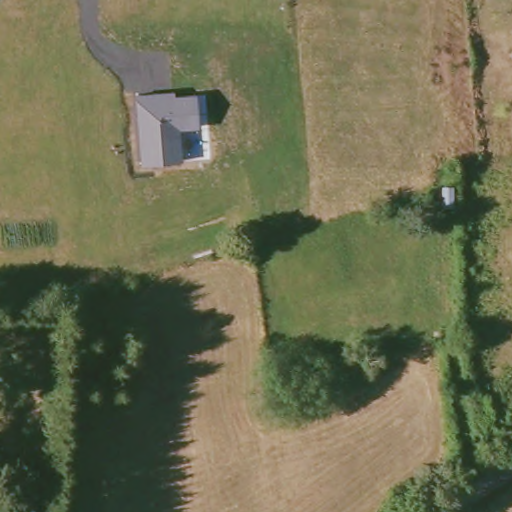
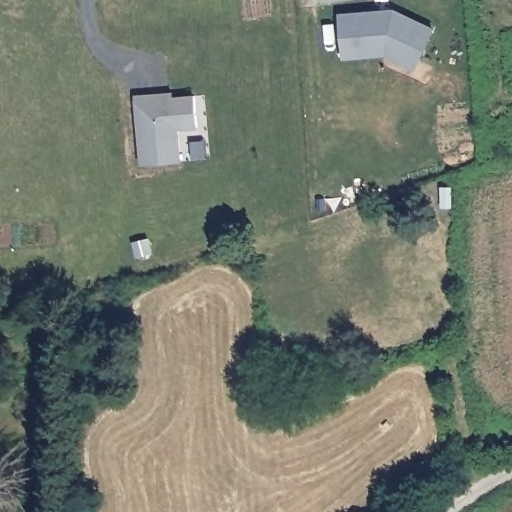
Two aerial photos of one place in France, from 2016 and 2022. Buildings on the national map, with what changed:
new [(435,28),(417,70),(385,55),(344,58),(340,12),(394,8),(435,28)]
unchanged [(173,91),(173,96),(195,94),(199,128),(180,130),(182,161),(139,166),(133,96),(173,91)]
unchanged [(452,205),(442,205),(442,187),(451,187),(452,205)]
unchanged [(90,351),(106,351),(105,377),(90,375),(90,351)]

